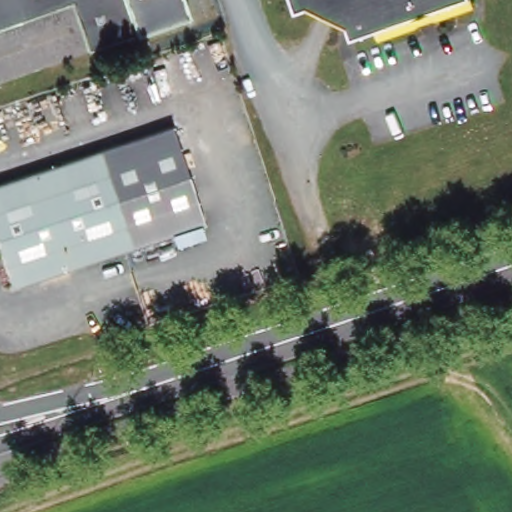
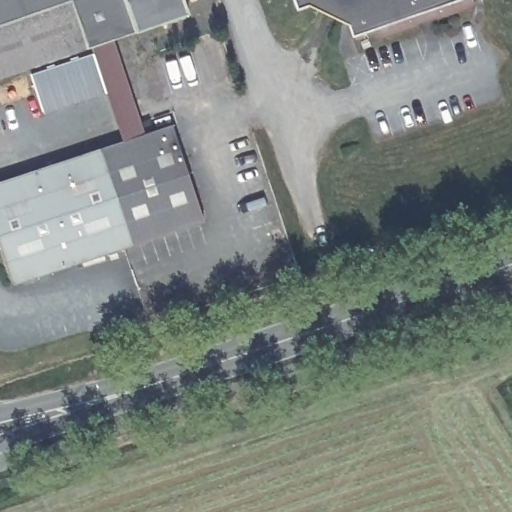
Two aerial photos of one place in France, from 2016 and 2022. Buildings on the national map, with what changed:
unchanged [(137,30),(88,45),(0,77),(0,0),(127,0),(137,30)]
unchanged [(189,13),(137,30),(127,0),(184,0),(189,13)]
unchanged [(471,5),(434,16),(430,13),(415,18),(412,23),(376,34),(373,24),(348,31),(344,19),(319,0),(469,0),(471,5)]
new [(123,141),(105,90),(44,111),(32,73),(93,53),(90,44),(113,37),(144,134),(123,141)]
unchanged [(49,164),(172,125),(203,220),(88,257),(76,261),(38,273),(11,282),(0,262),(0,181),(49,164)]

